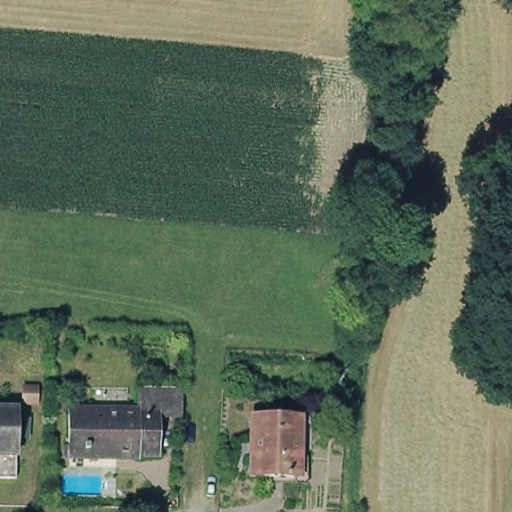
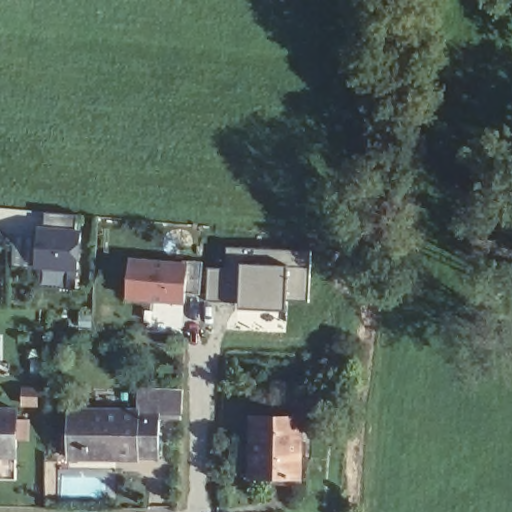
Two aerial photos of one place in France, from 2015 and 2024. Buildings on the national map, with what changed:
new [(34,268),(37,226),(45,227),(46,214),(77,216),(76,229),(82,230),(78,272),(34,268)]
new [(223,270),(224,249),(309,253),(308,302),(284,302),(285,312),(235,311),(235,304),(205,302),(205,270),(223,270)]
new [(126,300),(130,258),(186,262),(183,305),(126,300)]
unchanged [(131,449),(62,450),(62,403),(131,405),(132,382),(165,382),(175,383),(174,412),(152,410),(151,449),(131,449)]
unchanged [(0,408),(10,408),(8,453),(0,453),(0,408)]
unchanged [(294,413),(293,475),(243,474),(244,412),(294,413)]
unchanged [(0,453),(8,453),(7,478),(0,478),(0,453)]

